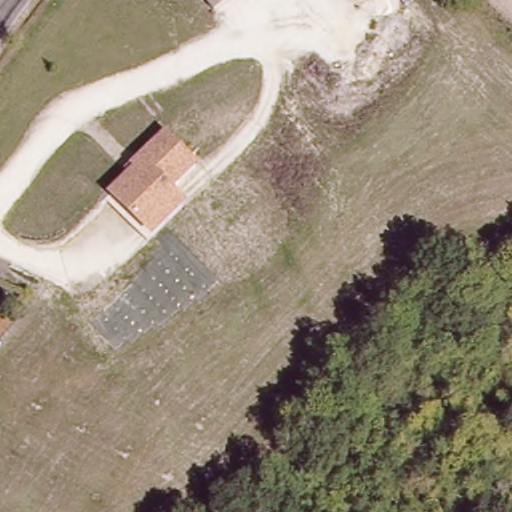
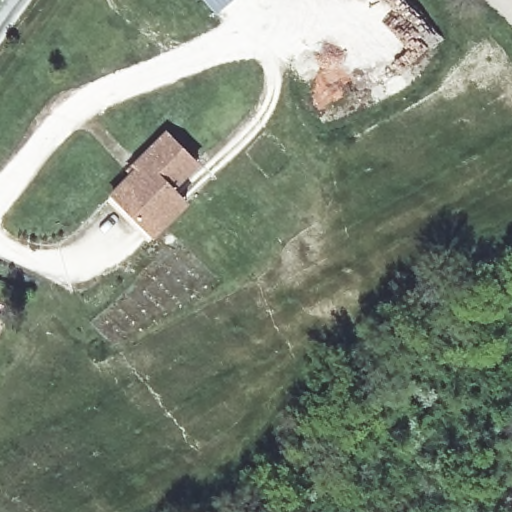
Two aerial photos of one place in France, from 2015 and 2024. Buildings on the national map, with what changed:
unchanged [(207,0),(208,0),(207,1),(207,0)]
unchanged [(124,170),(167,127),(203,164),(176,189),(192,202),(150,241),(109,194),(129,176),(124,170)]

